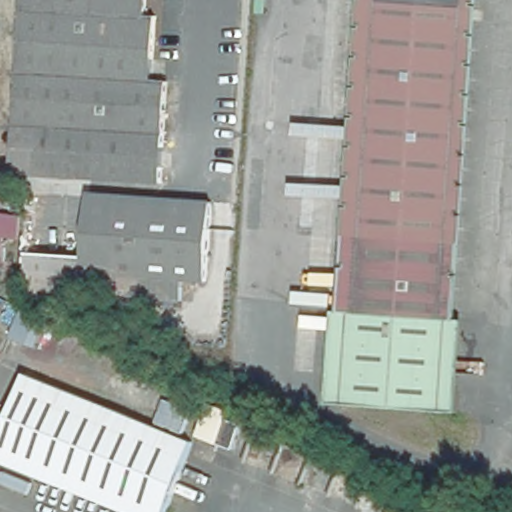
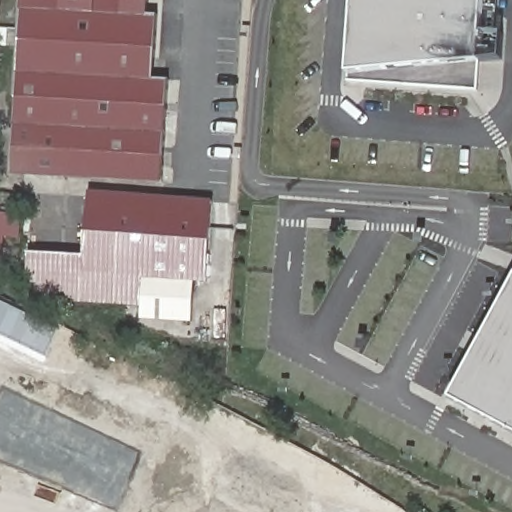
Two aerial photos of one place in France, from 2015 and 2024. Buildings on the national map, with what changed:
unchanged [(43,127),(14,126),(23,0),(144,0),(143,15),(155,17),(150,81),(165,83),(158,186),(40,177),(43,127)]
new [(354,0),(484,0),(479,61),(349,74),(354,0)]
demolished [(414,403),(357,364),(381,0),(468,0),(440,412),(426,411),(414,403)]
new [(348,83),(349,74),(479,61),(477,92),(348,83)]
unchanged [(11,175),(14,126),(43,127),(40,177),(11,175)]
unchanged [(87,195),(213,202),(208,286),(185,286),(182,305),(137,303),(136,282),(82,275),(87,195)]
unchanged [(9,216),(7,269),(0,266),(0,212),(9,216)]
new [(512,288),(512,431),(452,399),(512,288)]
demolished [(354,405),(357,364),(414,403),(426,411),(354,405)]
demolished [(168,512),(127,512),(0,459),(0,443),(29,375),(195,444),(168,512)]
demolished [(225,449),(205,439),(218,406),(223,408),(239,417),(236,424),(251,430),(240,455),(225,449)]

